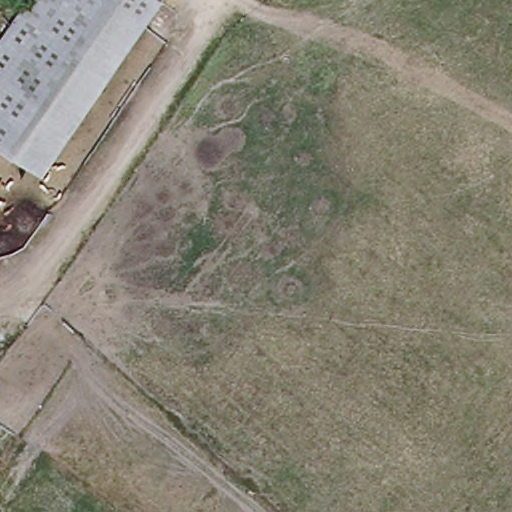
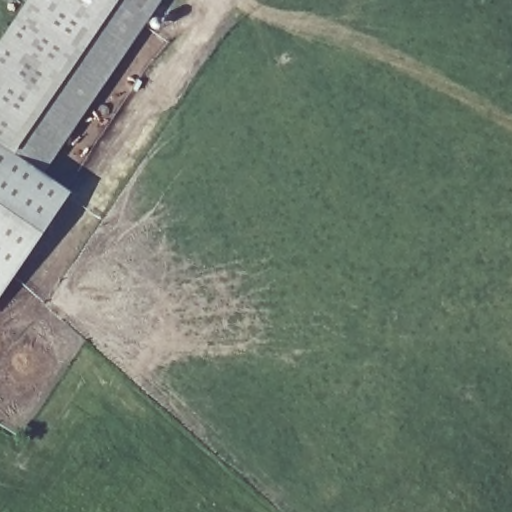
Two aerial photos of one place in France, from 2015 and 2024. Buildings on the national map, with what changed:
unchanged [(0,151),(0,40),(17,15),(33,27),(52,0),(158,0),(39,178),(0,151)]
unchanged [(17,15),(27,0),(52,0),(33,27),(17,15)]
new [(68,193),(0,299),(0,151),(39,178),(41,175),(68,193)]

